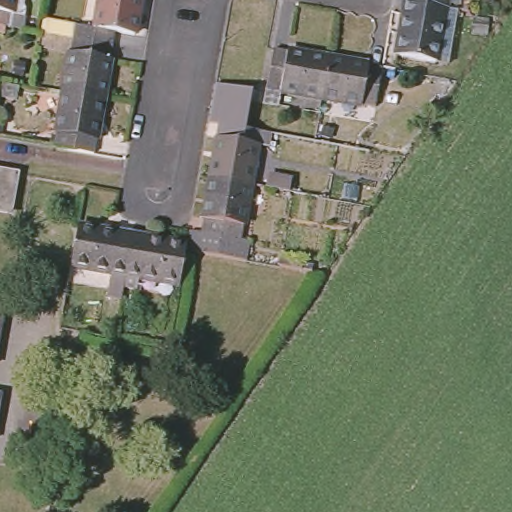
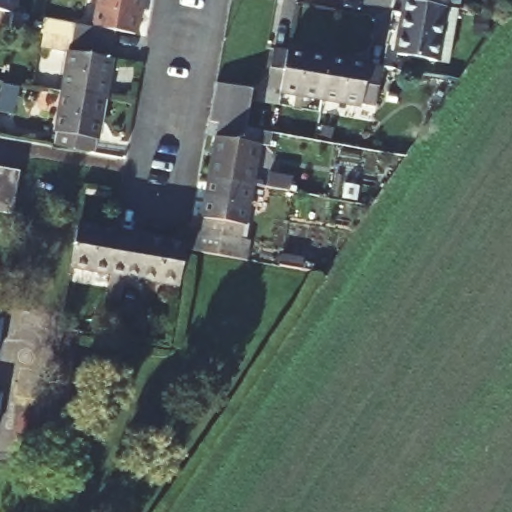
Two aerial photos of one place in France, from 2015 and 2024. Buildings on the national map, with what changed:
unchanged [(0,0),(20,0),(15,27),(0,24),(0,0)]
unchanged [(75,24),(95,27),(100,0),(135,0),(130,33),(115,30),(112,44),(72,37),(75,24)]
unchanged [(435,60),(398,53),(408,0),(423,0),(445,5),(435,60)]
unchanged [(445,5),(423,0),(446,0),(445,5)]
unchanged [(63,93),(72,37),(112,44),(102,99),(63,93)]
unchanged [(267,89),(274,47),(327,57),(319,98),(267,89)]
unchanged [(377,108),(319,98),(327,57),(383,67),(377,108)]
unchanged [(102,99),(93,152),(55,147),(63,93),(102,99)]
unchanged [(228,120),(264,126),(255,180),(214,173),(222,119),(228,120)]
unchanged [(0,206),(0,167),(15,170),(7,208),(0,206)]
unchanged [(205,225),(214,173),(255,180),(247,233),(205,225)]
unchanged [(130,270),(77,261),(77,260),(85,220),(138,230),(130,270)]
unchanged [(257,235),(253,255),(190,243),(191,239),(194,223),(205,225),(247,233),(257,235)]
unchanged [(147,273),(145,283),(128,280),(130,270),(138,230),(191,239),(190,243),(185,279),(147,273)]
unchanged [(0,325),(0,319),(1,320),(0,325)]

